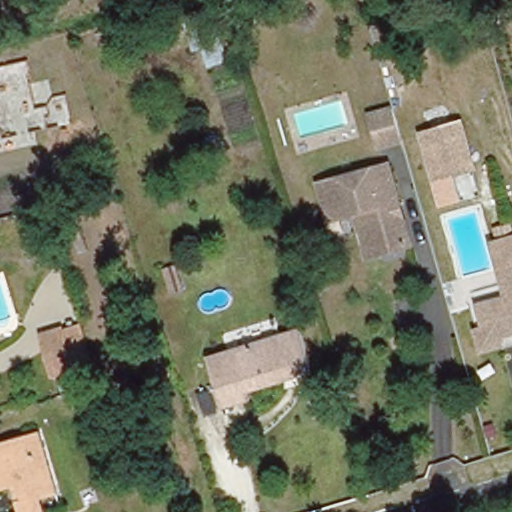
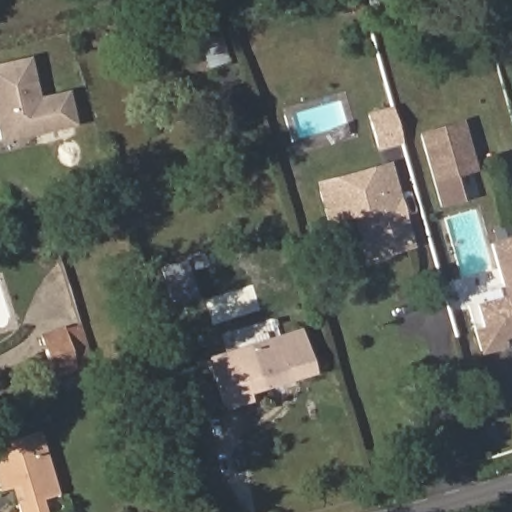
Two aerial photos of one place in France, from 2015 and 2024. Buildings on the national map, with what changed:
unchanged [(207,69),(202,50),(189,54),(178,15),(210,5),(229,60),(207,69)]
new [(76,125),(0,143),(0,62),(29,55),(38,96),(68,89),(76,125)]
unchanged [(399,129),(403,142),(378,150),(368,119),(393,110),(399,129)]
unchanged [(459,126),(473,176),(438,186),(423,136),(459,126)]
unchanged [(357,228),(367,225),(368,222),(365,212),(358,209),(331,216),(320,181),(389,160),(414,240),(383,248),(364,254),(357,228)]
unchanged [(472,325),(480,323),(474,301),(503,293),(487,239),(512,232),(512,314),(509,315),(512,324),(512,326),(495,331),(498,342),(478,347),(472,325)]
unchanged [(297,323),(310,365),(257,380),(244,339),(297,323)]
unchanged [(90,365),(56,376),(42,335),(77,324),(90,365)]
unchanged [(257,380),(246,383),(249,393),(221,402),(205,351),(244,339),(257,380)]
unchanged [(0,486),(0,437),(35,427),(37,426),(56,491),(32,498),(37,512),(9,512),(23,507),(19,495),(13,497),(8,483),(0,486)]

